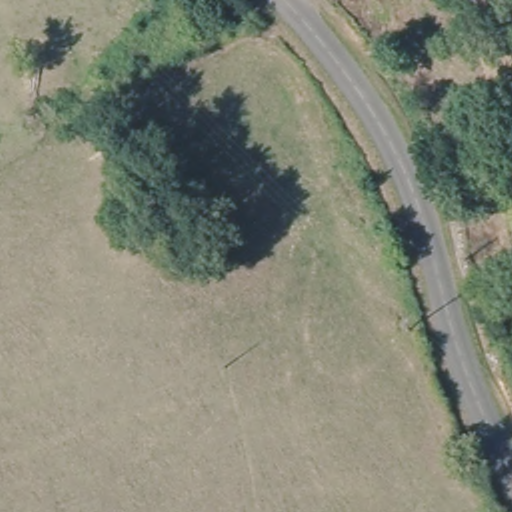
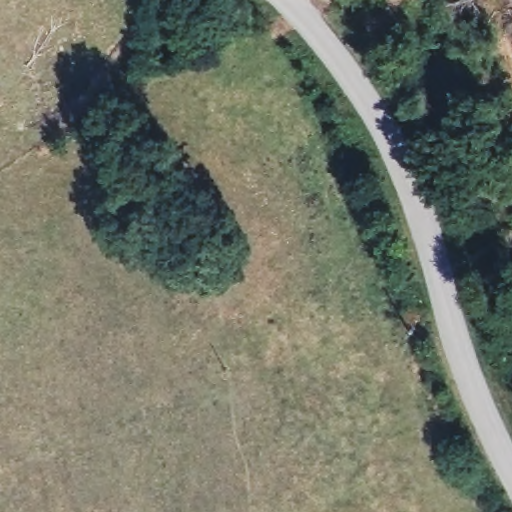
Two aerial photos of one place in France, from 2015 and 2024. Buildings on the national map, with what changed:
unchanged [(184,0),(196,0),(214,22),(196,36),(177,6),(184,0)]

